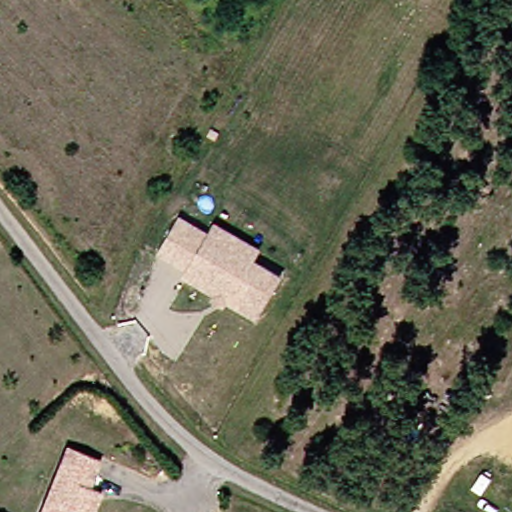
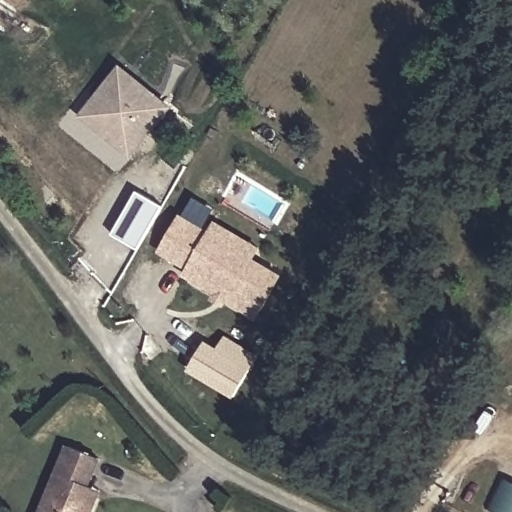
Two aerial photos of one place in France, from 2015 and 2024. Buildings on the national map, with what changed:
new [(172,107),(131,158),(80,116),(121,65),(172,107)]
unchanged [(255,317),(185,274),(190,267),(161,250),(182,216),(211,234),(217,223),(260,250),(254,260),(281,278),(255,317)]
new [(219,348),(226,335),(260,356),(235,399),(187,371),(205,340),(219,348)]
unchanged [(100,457),(90,481),(101,487),(91,512),(46,512),(75,445),(100,457)]

